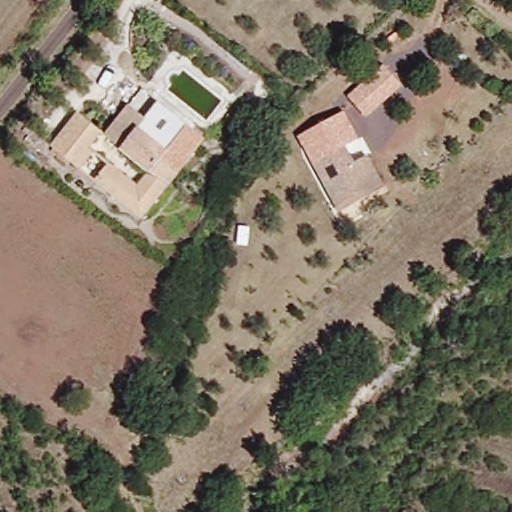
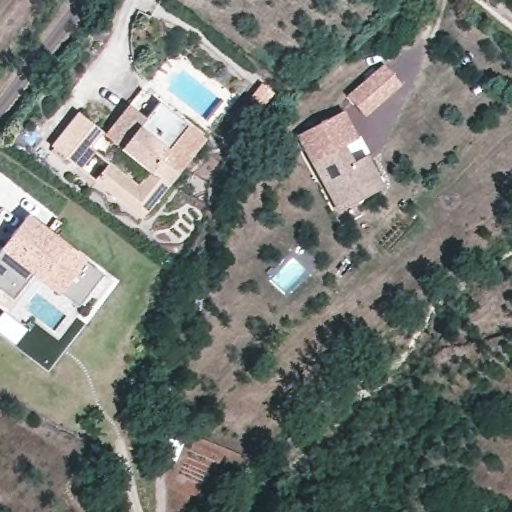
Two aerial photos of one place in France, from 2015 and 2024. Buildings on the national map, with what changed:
unchanged [(402,85),(365,118),(346,95),(382,64),(402,85)]
unchanged [(202,133),(174,168),(139,213),(93,177),(107,160),(135,182),(147,166),(101,130),(126,99),(145,114),(173,135),(184,121),(202,133)]
unchanged [(83,141),(89,145),(75,163),(46,140),(72,107),(96,125),(83,141)]
unchanged [(343,110),(357,138),(342,147),(339,143),(308,160),(296,136),(343,110)]
unchanged [(308,160),(339,143),(348,160),(365,151),(382,184),(366,192),(336,209),(308,160)]
new [(67,246),(87,260),(85,263),(103,275),(112,283),(95,305),(83,301),(77,311),(36,280),(9,313),(0,307),(0,292),(0,254),(1,252),(0,251),(27,216),(67,245),(67,246)]
new [(13,348),(0,337),(0,315),(2,313),(25,332),(13,348)]

